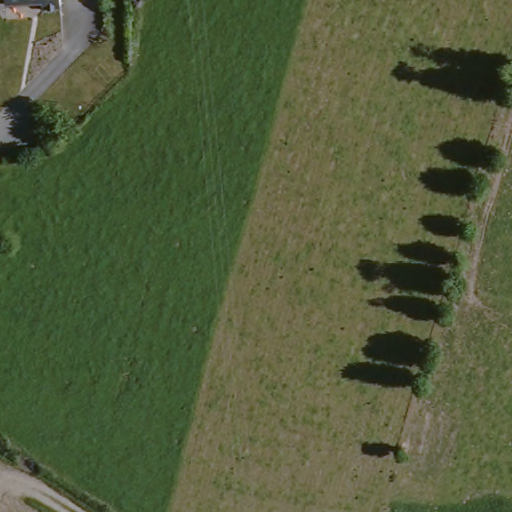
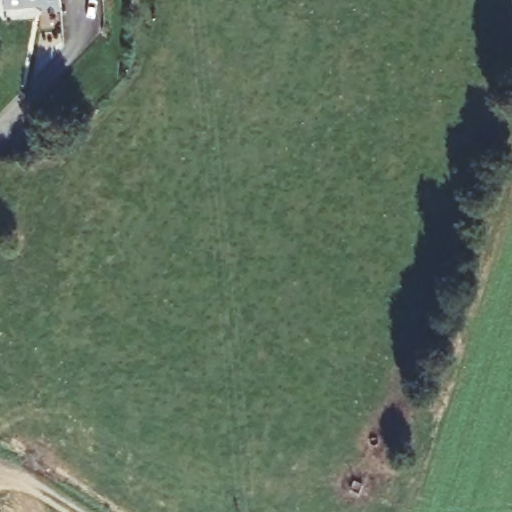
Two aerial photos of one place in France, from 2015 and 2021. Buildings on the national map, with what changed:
unchanged [(32,8),(33,0),(51,0),(51,9),(32,8)]

